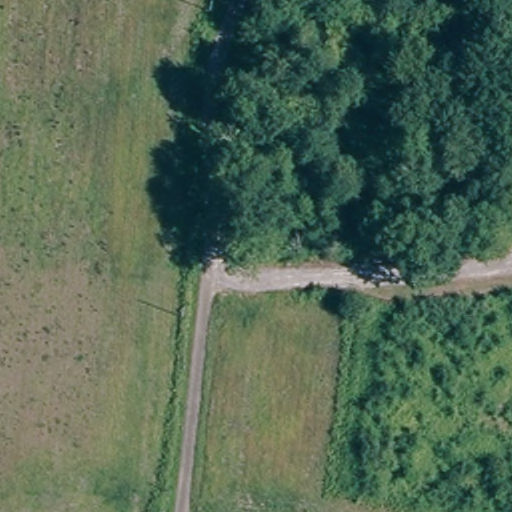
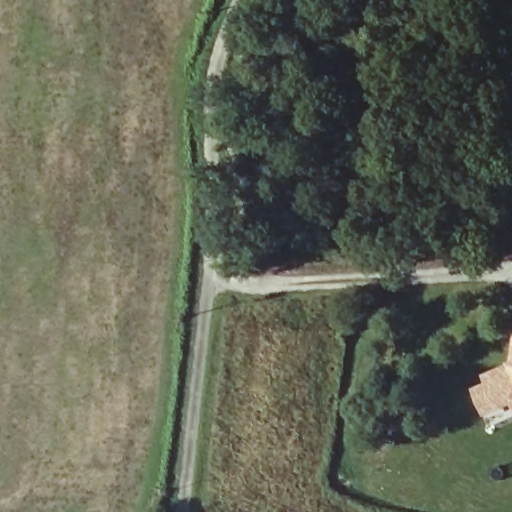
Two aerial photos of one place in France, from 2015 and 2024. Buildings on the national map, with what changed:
new [(474,386),(486,381),(483,374),(510,363),(512,354),(512,406),(484,415),(474,386)]

